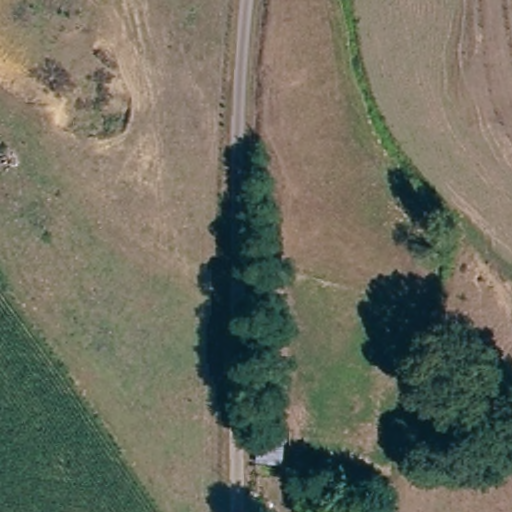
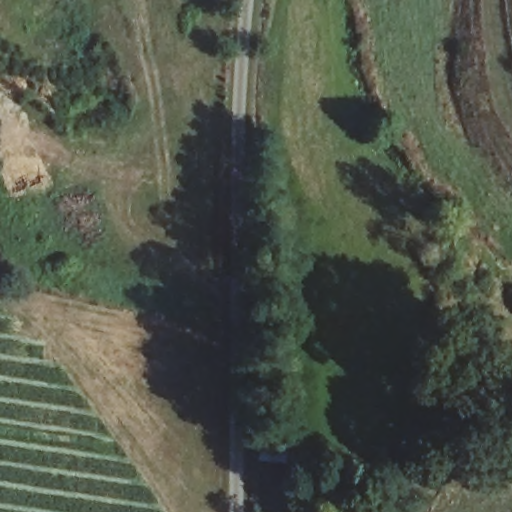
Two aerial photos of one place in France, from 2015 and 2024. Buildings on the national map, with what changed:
unchanged [(249,468),(252,416),(284,417),(284,468),(249,468)]

